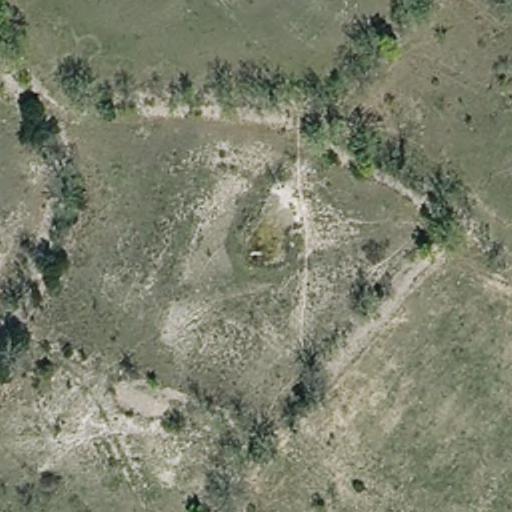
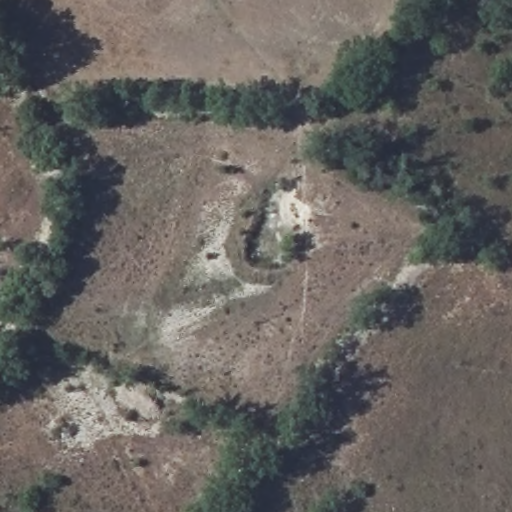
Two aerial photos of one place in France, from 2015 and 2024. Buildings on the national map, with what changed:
[]

